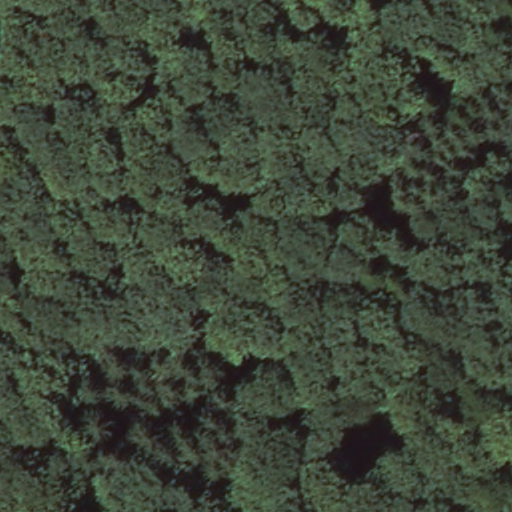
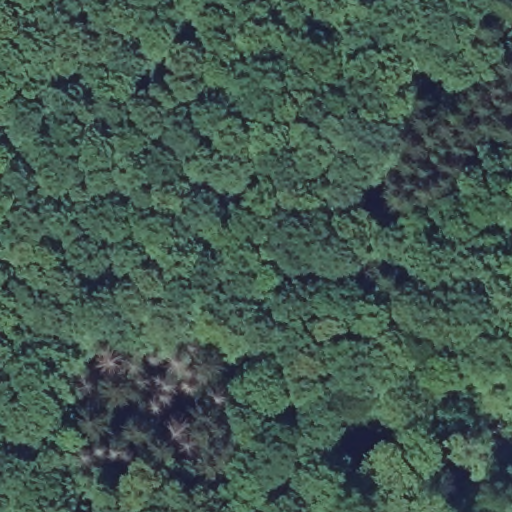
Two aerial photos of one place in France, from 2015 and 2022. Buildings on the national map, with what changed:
[]

